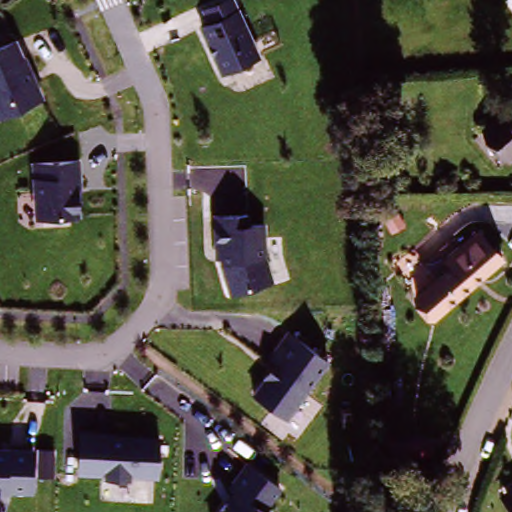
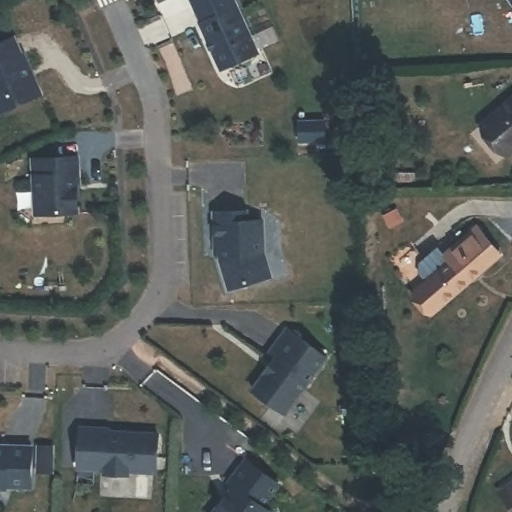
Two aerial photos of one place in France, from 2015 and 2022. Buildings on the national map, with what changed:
unchanged [(259,55),(219,73),(196,25),(204,21),(198,6),(214,0),(234,0),(259,55)]
unchanged [(0,116),(0,43),(15,36),(44,95),(0,116)]
unchanged [(482,125),(512,98),(512,154),(509,156),(482,125)]
unchanged [(80,215),(33,217),(30,158),(79,156),(80,215)]
unchanged [(249,221),(264,220),(266,257),(273,278),(228,293),(216,257),(213,258),(210,211),(248,209),(249,221)]
unchanged [(453,266),(444,257),(475,230),(501,260),(433,320),(416,299),(453,266)]
unchanged [(286,353),(274,341),(287,323),(333,357),(294,412),(258,384),(286,353)]
unchanged [(131,473),(131,477),(103,476),(103,472),(75,472),(78,426),(110,427),(110,431),(159,433),(158,474),(131,473)]
unchanged [(39,482),(0,482),(0,443),(39,444),(39,482)]
unchanged [(231,481),(251,458),(284,479),(269,504),(276,512),(218,512),(236,486),(231,481)]
unchanged [(512,492),(512,504),(506,496),(512,492)]

